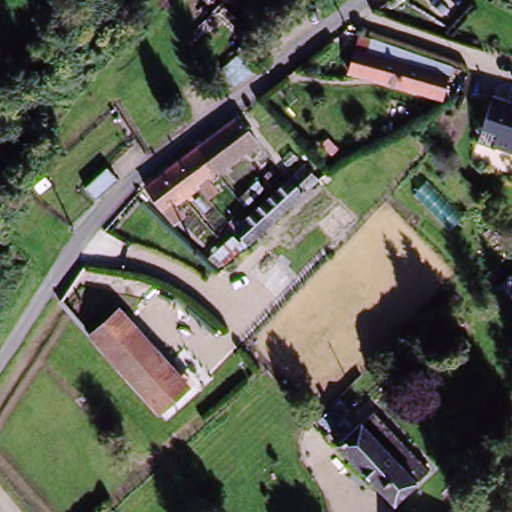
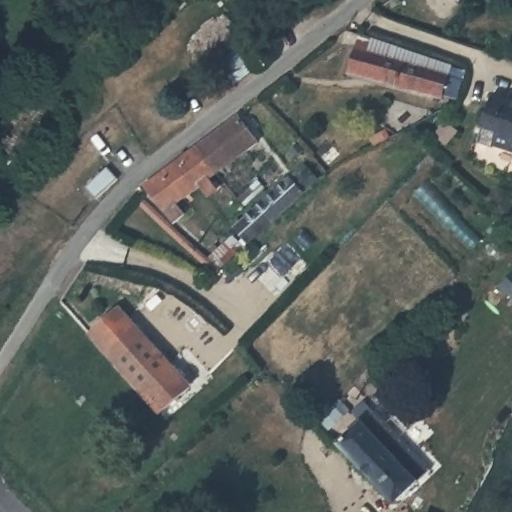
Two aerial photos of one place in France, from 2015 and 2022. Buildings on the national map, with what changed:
unchanged [(452,83),(361,55),(356,53),(360,43),(456,73),(452,83)]
unchanged [(443,107),(352,76),(361,55),(452,83),(443,107)]
unchanged [(509,101),(512,93),(512,156),(480,145),(494,97),(509,101)]
unchanged [(203,146),(221,133),(238,121),(259,146),(240,160),(222,173),(202,189),(186,200),(168,214),(149,189),(167,173),(183,162),(203,146)]
unchanged [(255,248),(240,232),(251,220),(267,204),(300,171),(318,189),(294,212),(281,225),(265,240),(255,248)]
unchanged [(88,337),(118,314),(164,366),(170,362),(191,387),(160,416),(88,337)]
unchanged [(335,439),(357,419),(368,410),(379,422),(396,441),(430,478),(419,487),(393,510),(335,439)]

